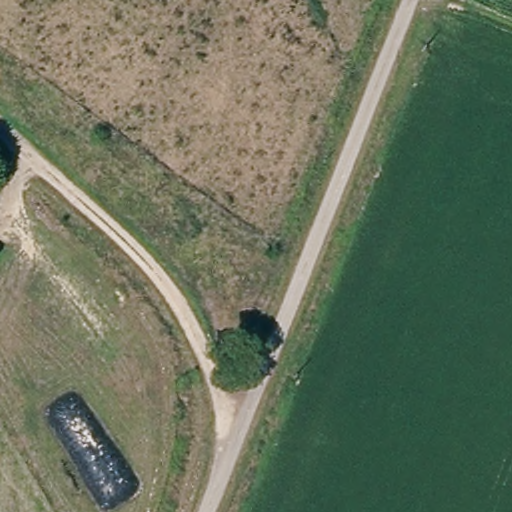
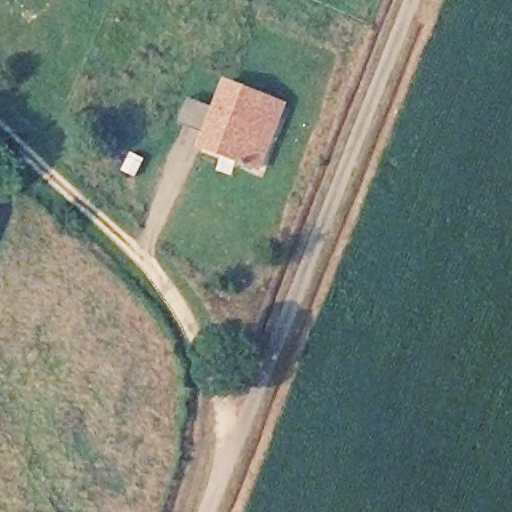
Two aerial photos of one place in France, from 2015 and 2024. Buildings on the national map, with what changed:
new [(286,105),(261,173),(201,148),(207,133),(181,124),(189,100),(215,109),(225,82),(286,105)]

